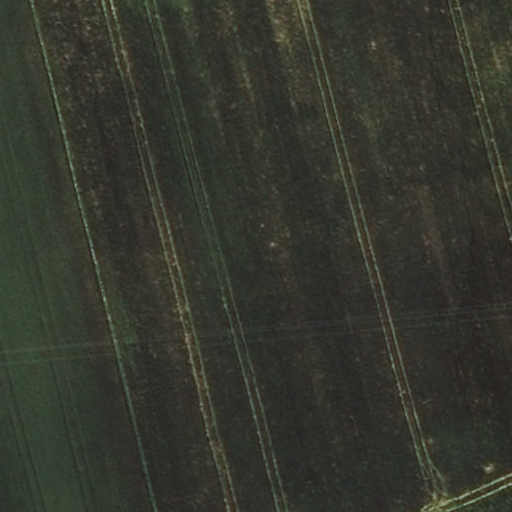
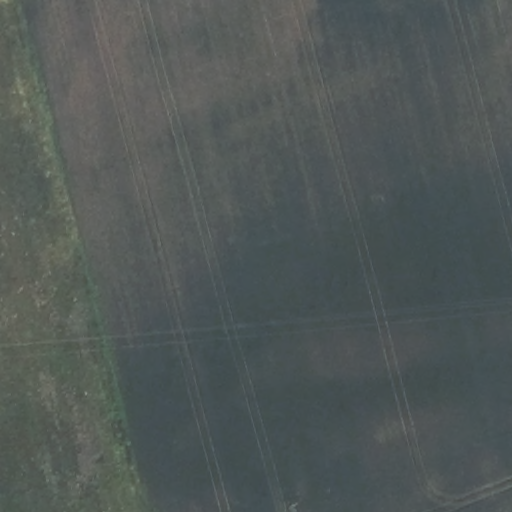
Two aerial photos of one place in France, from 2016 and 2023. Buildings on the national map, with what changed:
[]

